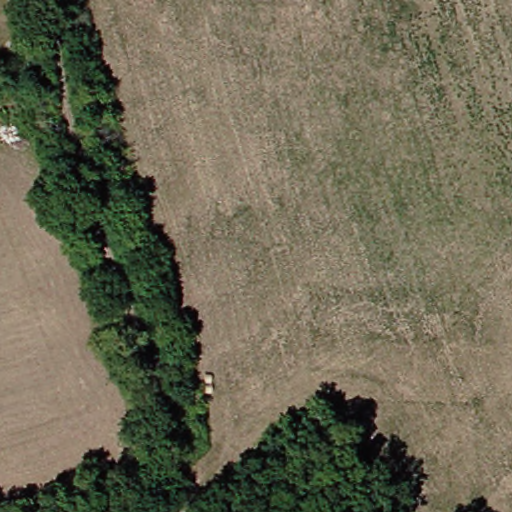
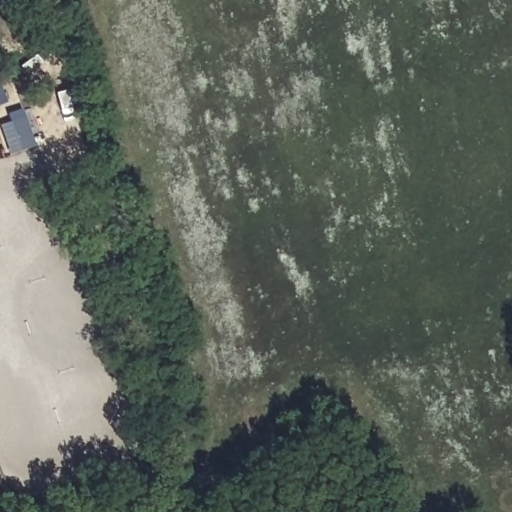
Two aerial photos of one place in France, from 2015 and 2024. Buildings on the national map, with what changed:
new [(0,105),(0,89),(5,102),(0,105)]
new [(9,155),(0,129),(0,126),(10,122),(6,114),(21,109),(35,146),(9,155)]

